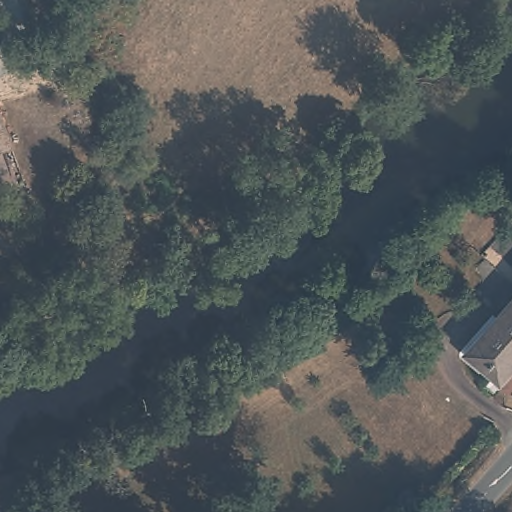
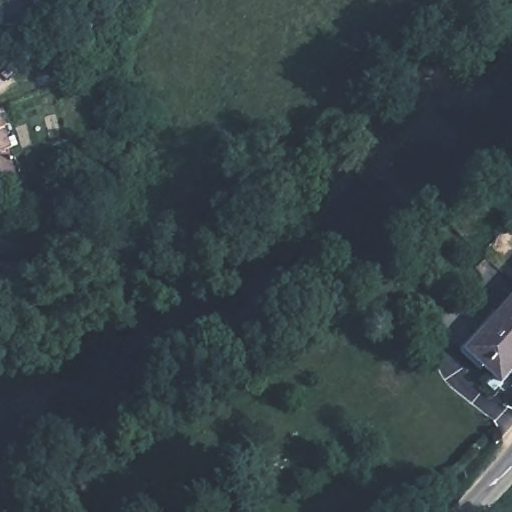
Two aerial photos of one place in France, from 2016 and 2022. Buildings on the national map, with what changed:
unchanged [(3,128),(9,149),(0,151),(0,118),(3,128)]
unchanged [(465,352),(512,303),(512,370),(498,384),(465,352)]

